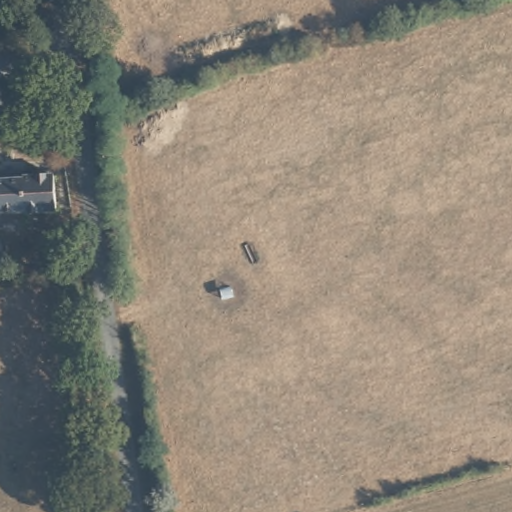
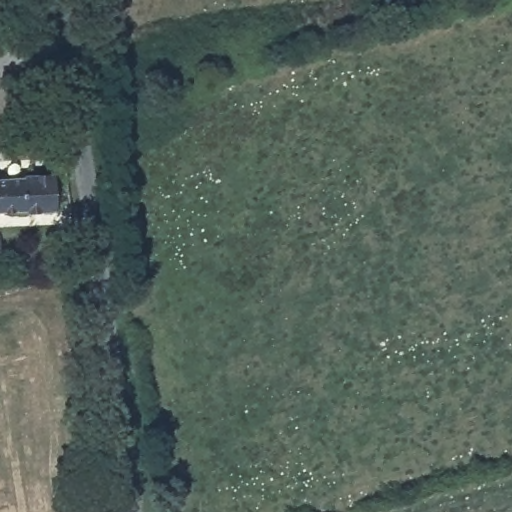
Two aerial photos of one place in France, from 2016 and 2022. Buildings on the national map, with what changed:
unchanged [(50,169),(51,202),(0,204),(0,171),(50,169)]
unchanged [(0,239),(1,258),(0,259),(0,239)]

